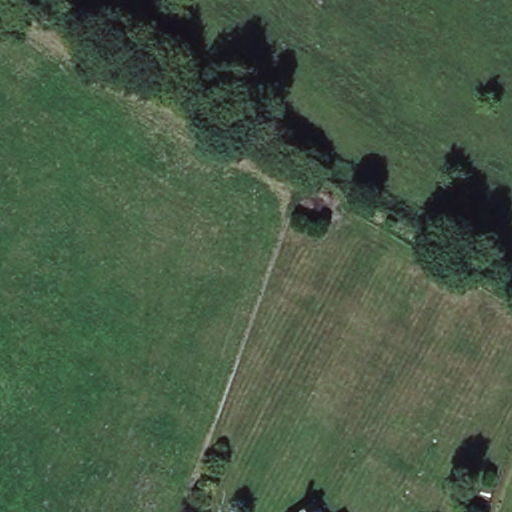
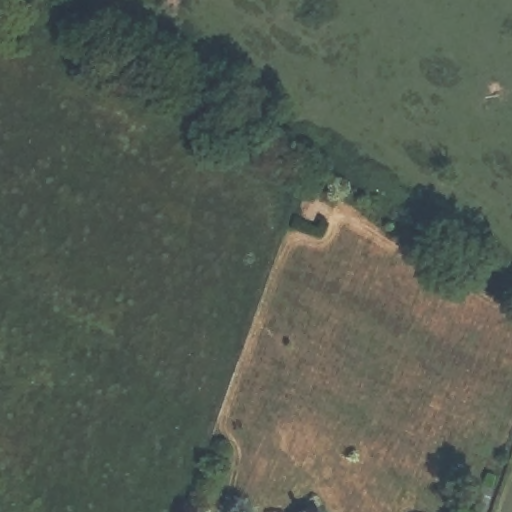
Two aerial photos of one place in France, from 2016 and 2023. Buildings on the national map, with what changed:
unchanged [(314,503),(319,512),(299,512),(314,503)]

